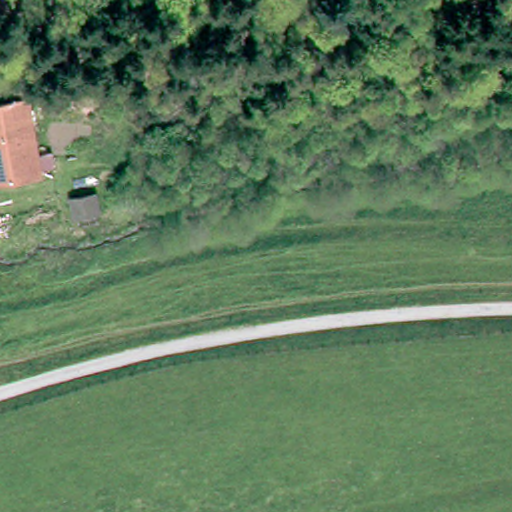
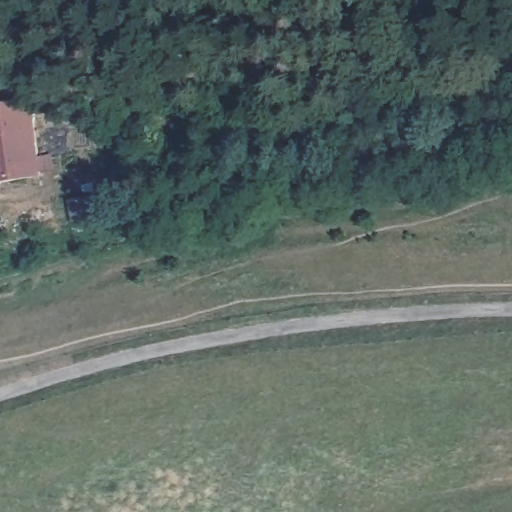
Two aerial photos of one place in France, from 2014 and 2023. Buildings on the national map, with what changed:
unchanged [(33,100),(43,176),(0,184),(0,107),(33,100)]

